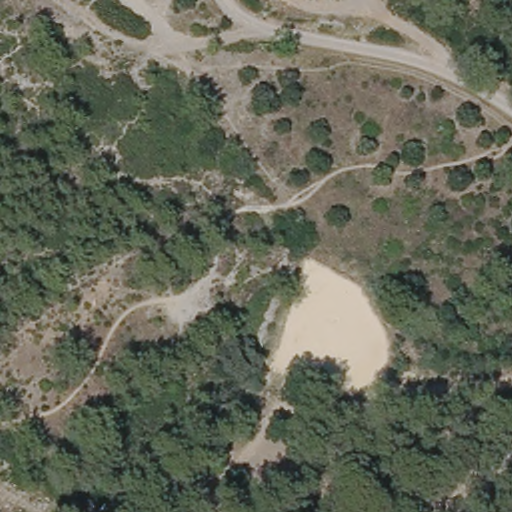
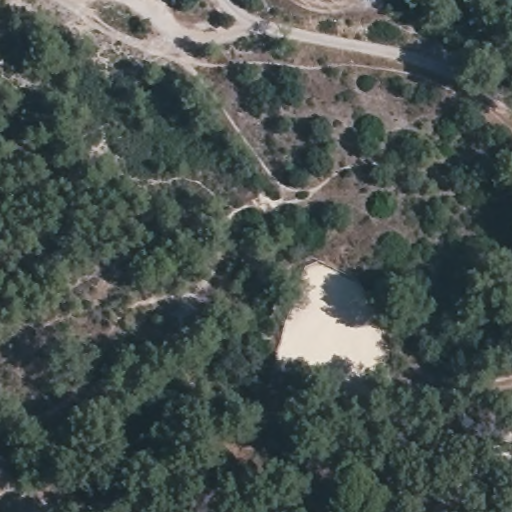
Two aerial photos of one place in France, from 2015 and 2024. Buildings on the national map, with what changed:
[]

